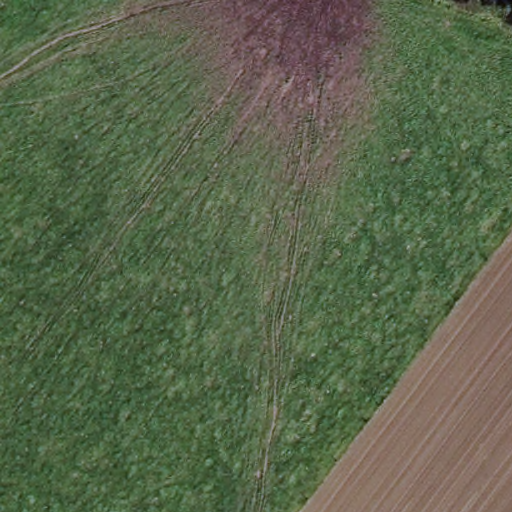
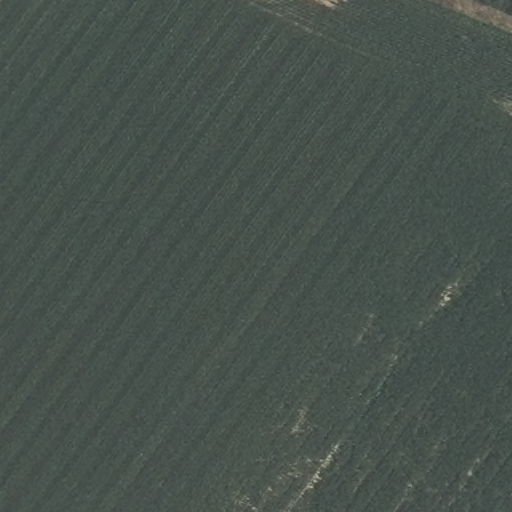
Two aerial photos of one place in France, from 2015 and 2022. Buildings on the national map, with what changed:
[]

